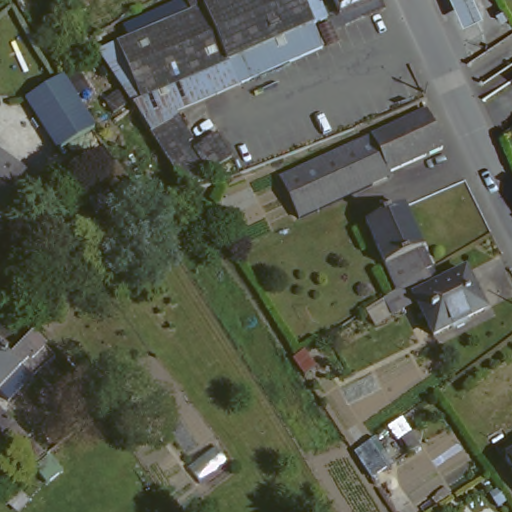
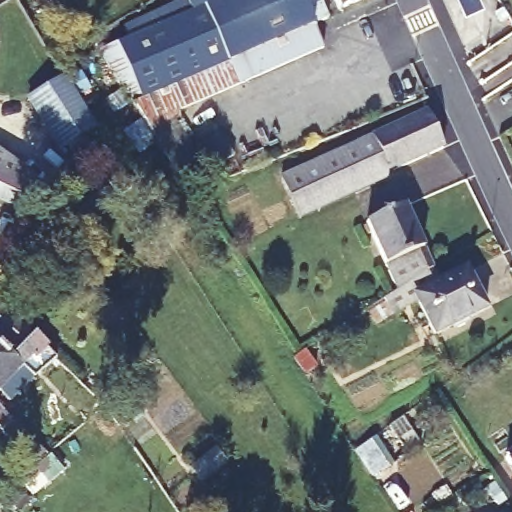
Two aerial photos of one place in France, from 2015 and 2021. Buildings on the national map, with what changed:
unchanged [(129,41),(126,31),(186,2),(185,0),(316,0),(327,22),(312,29),(322,52),(250,83),(174,115),(174,123),(215,187),(190,197),(133,107),(99,54),(117,46),(129,41)]
unchanged [(341,16),(333,0),(378,0),(341,16)]
unchanged [(461,25),(450,0),(472,0),(478,16),(461,25)]
unchanged [(62,77),(96,129),(82,137),(61,151),(29,99),(62,77)]
unchanged [(383,177),(387,182),(297,222),(278,181),(421,117),(437,152),(383,177)]
unchanged [(235,161),(212,176),(196,152),(219,137),(235,161)]
unchanged [(5,201),(0,199),(0,156),(17,169),(5,201)]
unchanged [(101,166),(114,156),(134,186),(117,197),(99,168),(101,166)]
unchanged [(377,223),(413,207),(441,268),(407,291),(377,223)]
unchanged [(441,268),(448,285),(475,271),(494,309),(445,336),(427,303),(402,317),(394,299),(407,291),(441,268)]
unchanged [(29,338),(32,342),(47,357),(37,365),(31,358),(19,370),(7,357),(0,365),(0,313),(27,340),(29,338)]
unchanged [(0,410),(0,379),(15,392),(0,410)]
unchanged [(100,412),(87,422),(81,414),(94,403),(100,412)]
unchanged [(43,453),(33,462),(0,428),(0,413),(42,453),(43,453)]
unchanged [(387,468),(372,477),(361,459),(377,450),(387,468)]
unchanged [(507,456),(512,453),(512,463),(507,456)]

